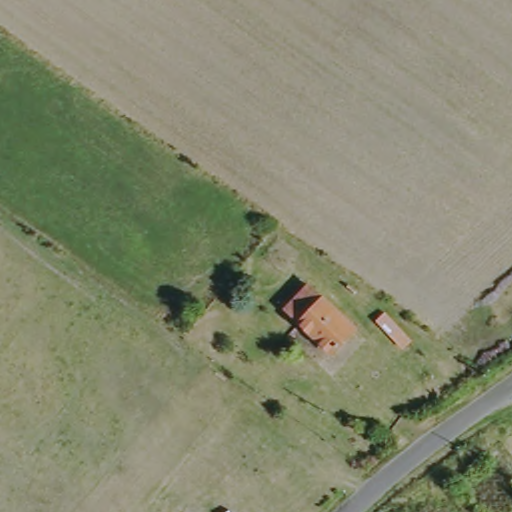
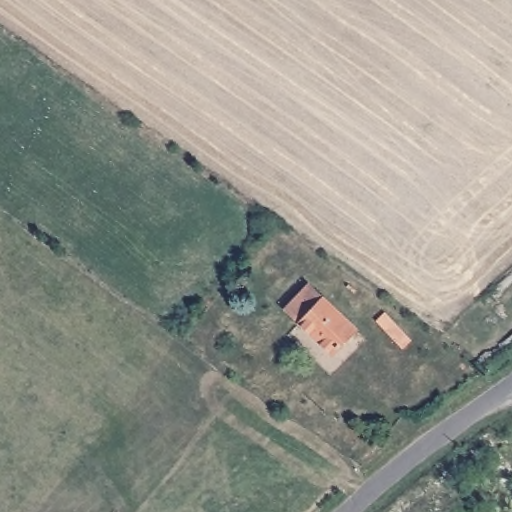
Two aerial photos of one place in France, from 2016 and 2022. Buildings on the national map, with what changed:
unchanged [(318,287),(366,333),(343,358),(295,313),(318,287)]

